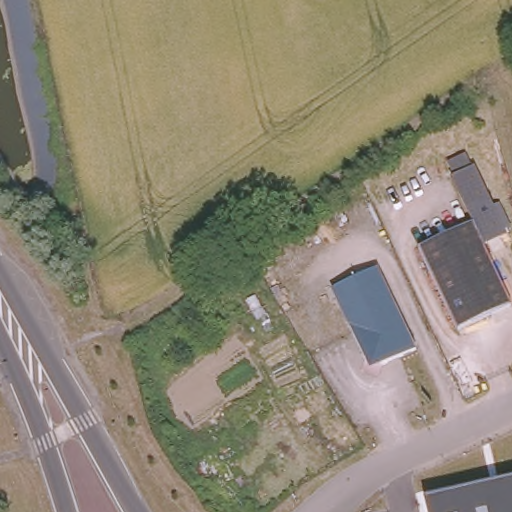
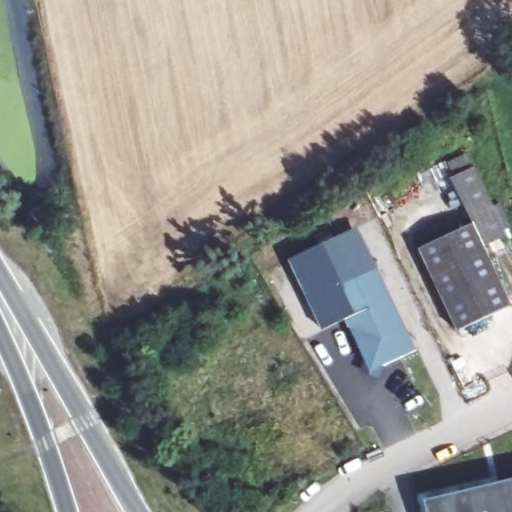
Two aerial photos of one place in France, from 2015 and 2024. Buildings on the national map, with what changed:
unchanged [(421,246),(475,220),(453,175),(456,173),(449,160),(467,151),(473,165),(476,163),(509,232),(486,243),(512,297),(512,303),(461,328),(421,246)]
new [(377,267),(333,290),(347,320),(323,331),(290,261),(357,228),(377,267)]
unchanged [(417,349),(388,363),(365,356),(333,290),(377,267),(417,349)]
unchanged [(512,480),(512,512),(427,512),(425,502),(512,480)]

